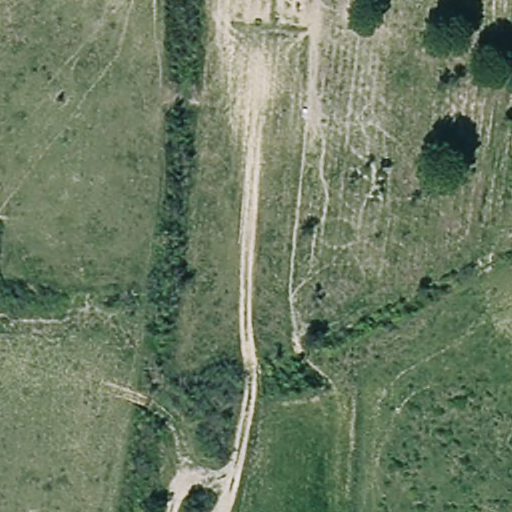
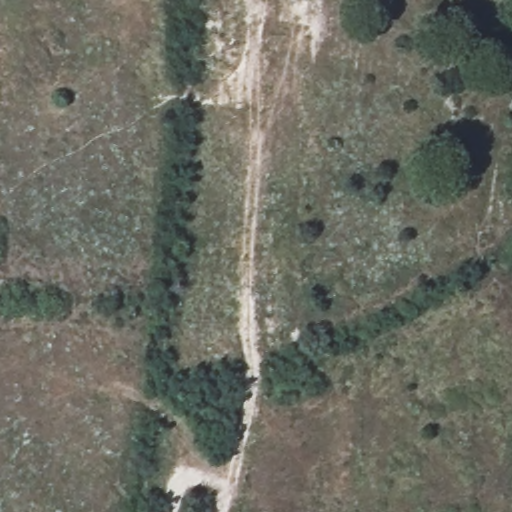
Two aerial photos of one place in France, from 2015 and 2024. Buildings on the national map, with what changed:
[]

